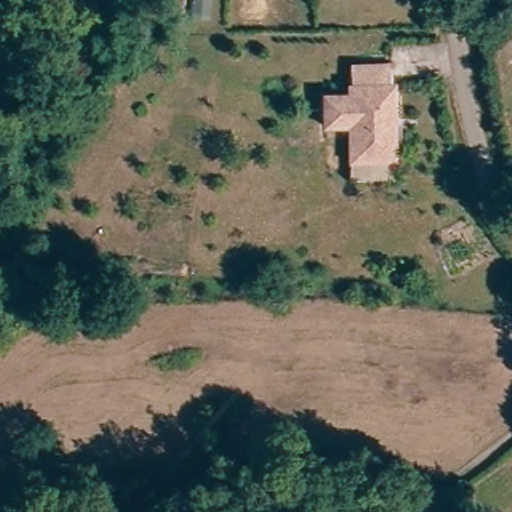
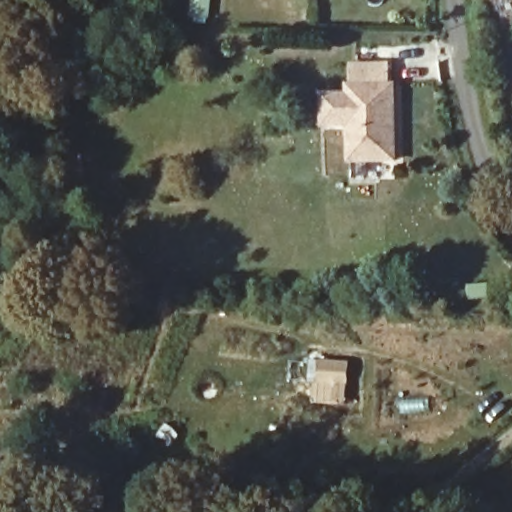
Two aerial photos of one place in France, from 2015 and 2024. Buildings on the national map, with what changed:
unchanged [(400,160),(350,161),(351,122),(325,122),(325,91),(352,91),(352,82),(354,82),(354,61),(396,61),(396,82),(397,82),(400,160)]
new [(307,357),(348,361),(345,406),(311,403),(310,369),(307,368),(307,357)]

